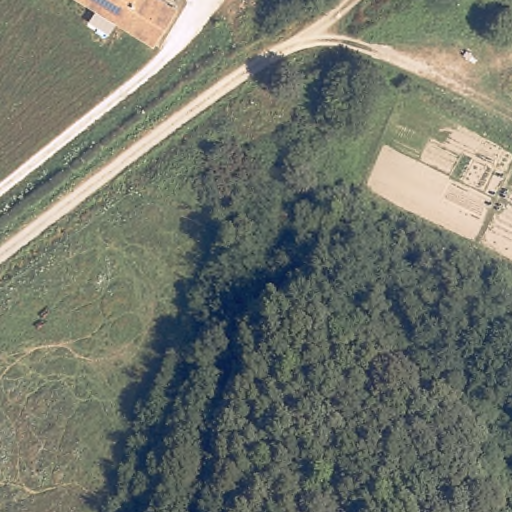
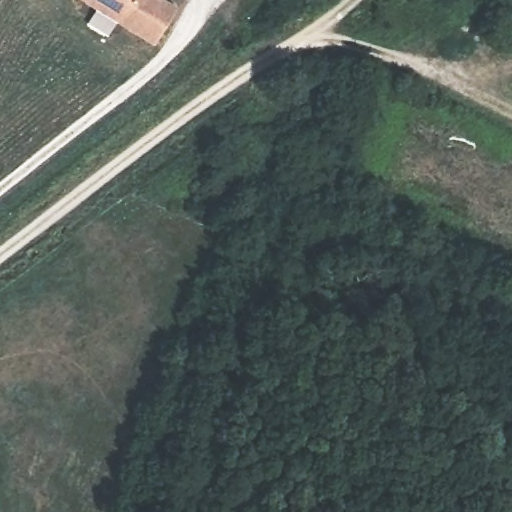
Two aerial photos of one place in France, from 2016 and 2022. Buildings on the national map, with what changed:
unchanged [(151,50),(72,0),(152,0),(175,14),(151,50)]

